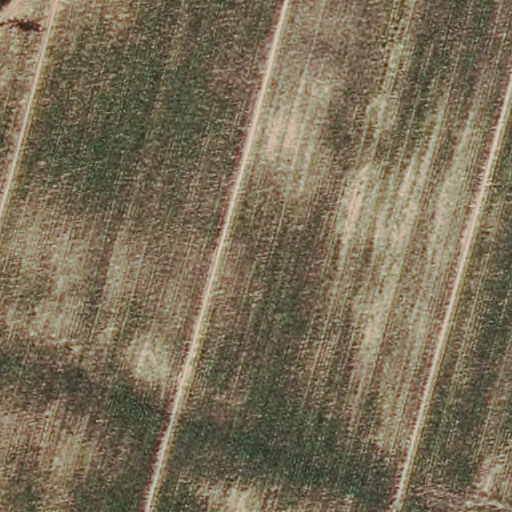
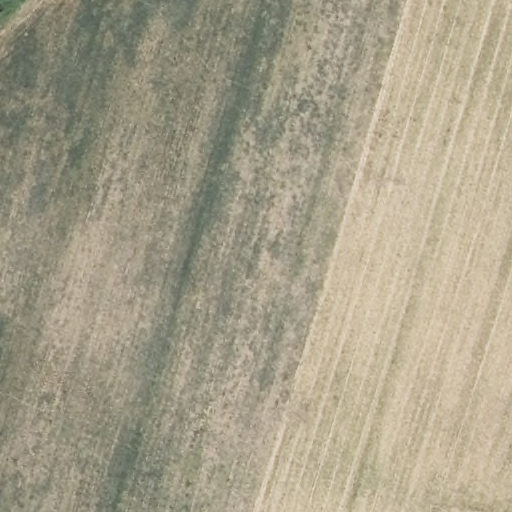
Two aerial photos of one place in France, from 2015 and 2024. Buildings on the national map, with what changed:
[]

